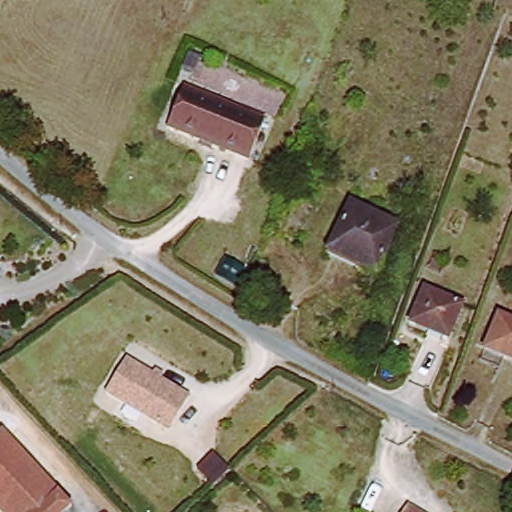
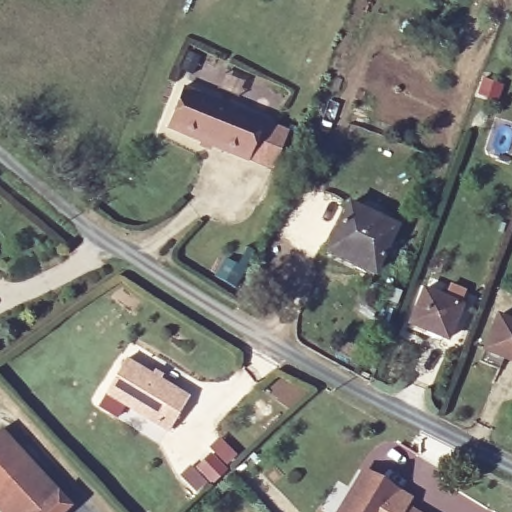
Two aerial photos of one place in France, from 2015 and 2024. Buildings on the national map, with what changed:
unchanged [(167,130),(182,92),(255,122),(266,126),(251,164),(240,159),(167,130)]
unchanged [(347,205),(396,226),(375,276),(326,255),(347,205)]
unchanged [(450,345),(412,330),(426,295),(463,310),(450,345)]
unchanged [(485,355),(500,319),(512,324),(512,366),(485,355)]
unchanged [(171,433),(107,395),(128,360),(191,399),(171,433)]
unchanged [(0,432),(4,428),(75,505),(68,512),(5,512),(0,506),(0,432)]
unchanged [(216,452),(232,469),(216,485),(198,470),(216,452)]
new [(412,498),(407,505),(418,512),(334,512),(361,468),(412,498)]
demolished [(419,512),(405,512),(410,505),(419,512)]

